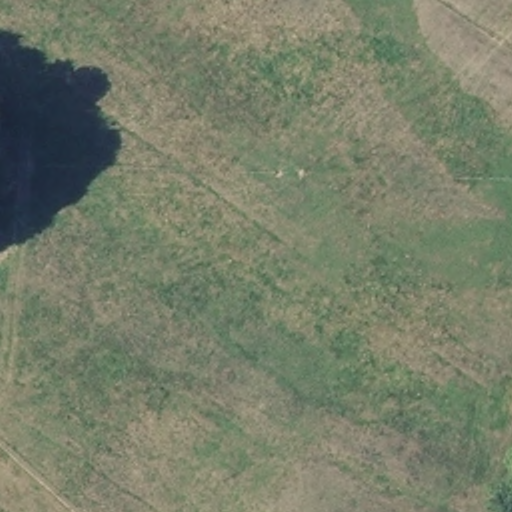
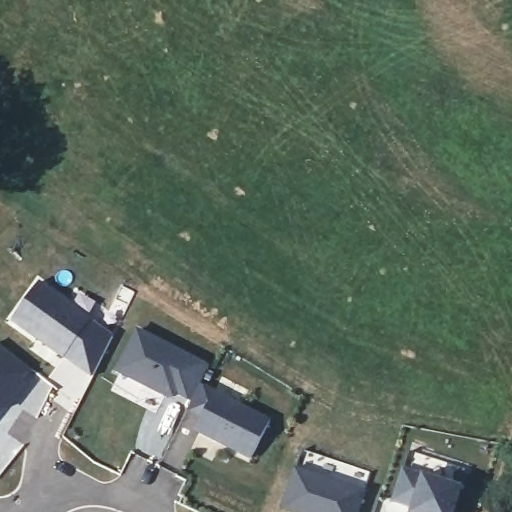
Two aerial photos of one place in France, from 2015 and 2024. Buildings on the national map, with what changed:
demolished [(0,180),(0,138),(22,151),(0,180)]
new [(110,337),(101,354),(90,376),(63,356),(62,357),(10,319),(38,282),(90,319),(89,321),(93,323),(110,337)]
new [(140,330),(211,367),(202,385),(194,401),(180,393),(179,395),(171,398),(119,371),(140,330)]
new [(20,381),(25,384),(5,409),(0,405),(0,406),(0,345),(30,370),(20,381)]
new [(194,401),(202,385),(272,422),(252,459),(197,430),(204,417),(190,409),(194,401)]
new [(370,491),(362,512),(300,512),(287,507),(301,467),(370,491)]
new [(465,489),(457,512),(416,512),(417,506),(398,499),(408,469),(465,489)]

